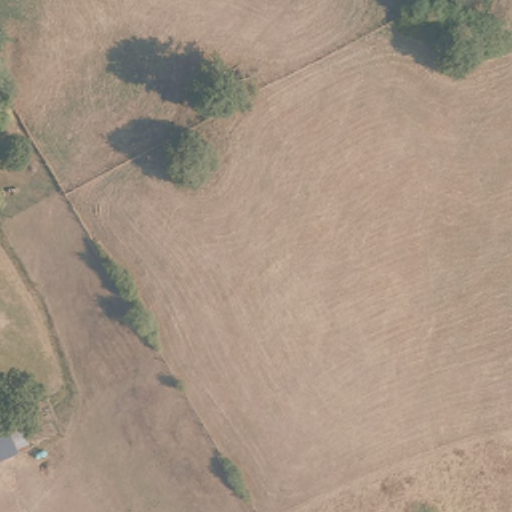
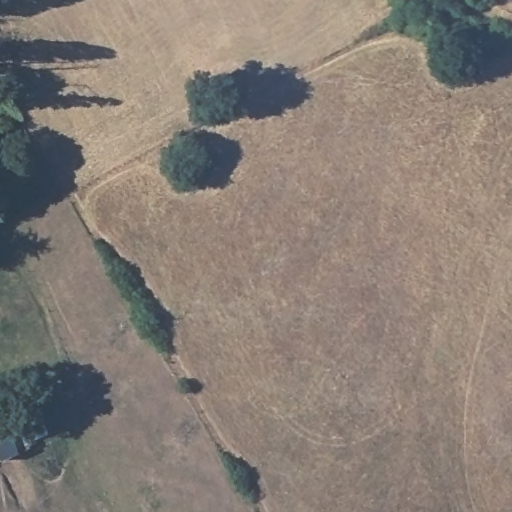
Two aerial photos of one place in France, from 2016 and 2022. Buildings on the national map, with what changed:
unchanged [(18,450),(7,424),(21,418),(32,444),(18,450)]

